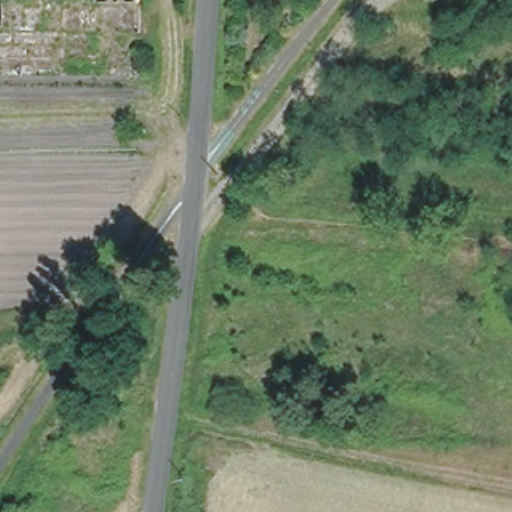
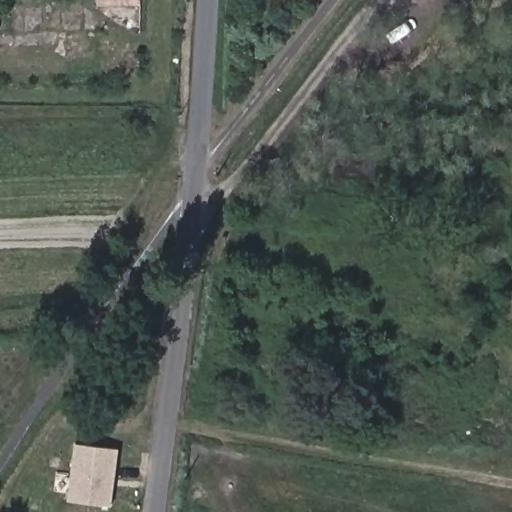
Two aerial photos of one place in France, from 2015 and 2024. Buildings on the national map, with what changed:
new [(98,4),(98,0),(141,0),(141,4),(98,4)]
new [(112,507),(66,501),(74,444),(119,449),(112,507)]

